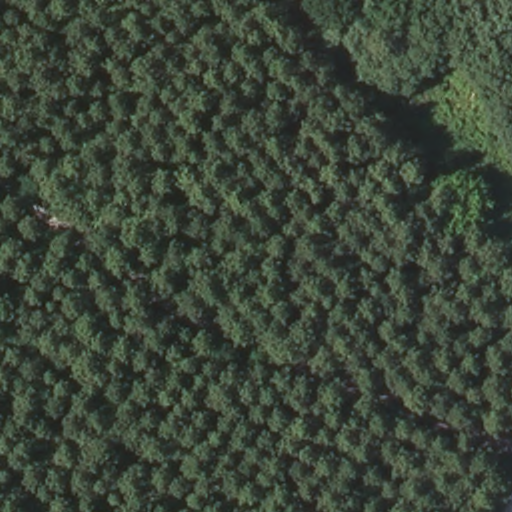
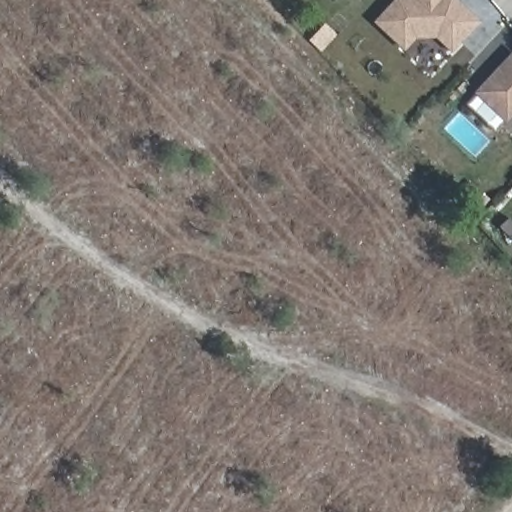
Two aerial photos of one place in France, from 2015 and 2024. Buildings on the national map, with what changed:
new [(436,37),(414,38),(403,51),(373,22),(394,0),(457,0),(481,23),(451,52),(436,37)]
new [(474,92),(512,52),(512,118),(507,123),(474,92)]

